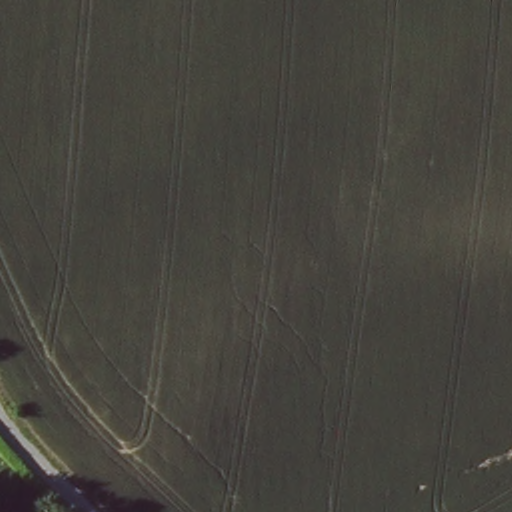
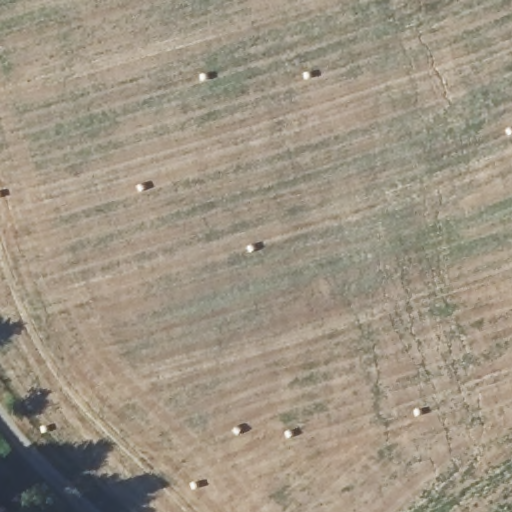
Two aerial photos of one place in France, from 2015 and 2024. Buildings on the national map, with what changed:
[]

